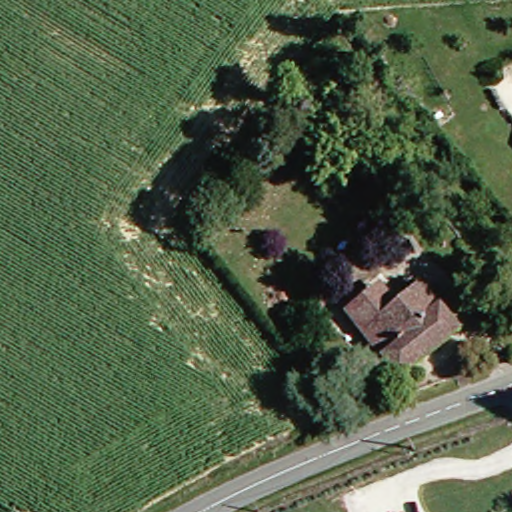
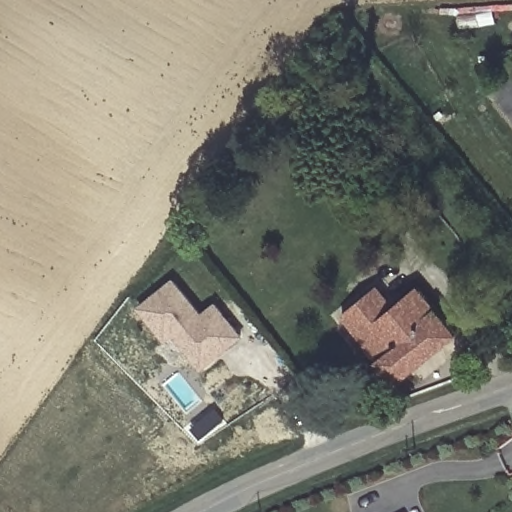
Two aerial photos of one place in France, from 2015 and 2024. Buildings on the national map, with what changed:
new [(194,363),(170,335),(163,342),(137,310),(170,282),(199,317),(213,306),(238,338),(222,352),(199,370),(194,363)]
unchanged [(460,335),(400,384),(345,318),(370,298),(379,290),(394,308),(419,287),(460,335)]

